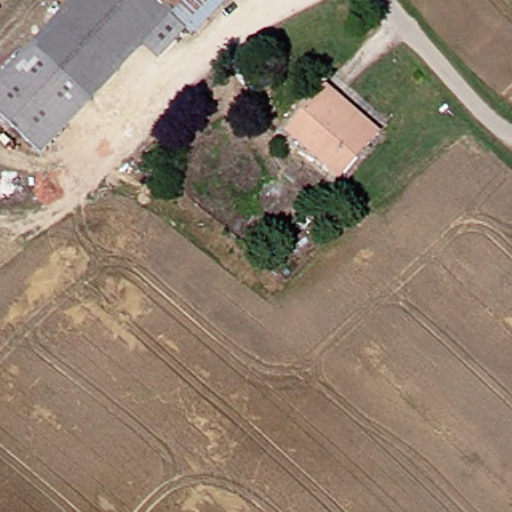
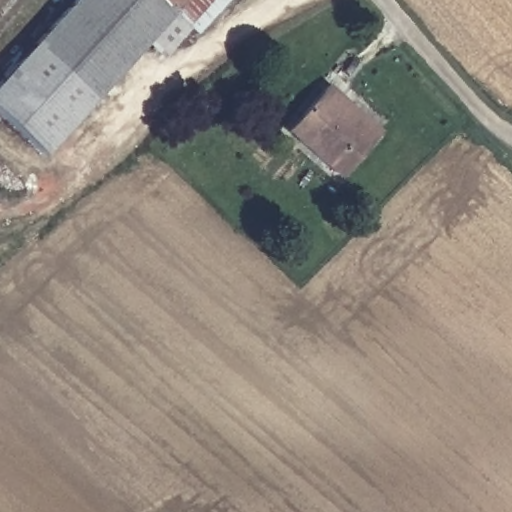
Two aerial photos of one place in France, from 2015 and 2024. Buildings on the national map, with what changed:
unchanged [(72,0),(147,0),(164,15),(86,102),(28,50),(72,0)]
unchanged [(147,0),(177,0),(164,15),(147,0)]
unchanged [(223,0),(190,38),(164,15),(177,0),(223,0)]
unchanged [(86,102),(65,126),(10,70),(28,50),(86,102)]
unchanged [(35,158),(0,127),(0,81),(10,70),(65,126),(35,158)]
unchanged [(278,131),(317,86),(332,100),(370,134),(362,142),(332,178),(278,131)]

